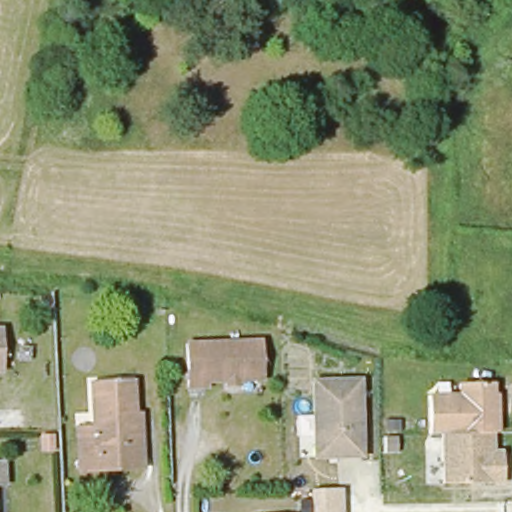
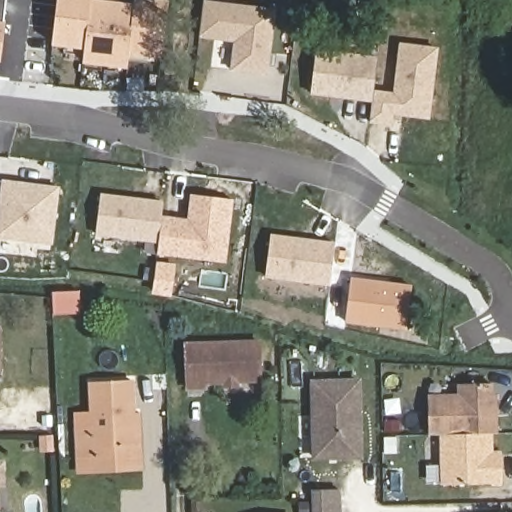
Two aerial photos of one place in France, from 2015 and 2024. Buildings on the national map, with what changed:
new [(0,0),(6,0),(0,43),(0,0)]
new [(128,52),(126,65),(83,61),(84,47),(52,42),(57,0),(92,0),(91,2),(133,7),(133,0),(150,0),(167,2),(161,55),(128,52)]
new [(230,71),(234,42),(199,37),(204,0),(208,0),(278,10),(269,76),(230,71)]
new [(439,47),(430,120),(395,115),(393,126),(369,123),(372,102),(374,90),(393,92),(399,42),(439,47)]
new [(311,95),(316,47),(379,54),(372,102),(311,95)]
new [(0,239),(0,187),(1,179),(61,186),(53,244),(0,239)]
new [(0,189),(0,180),(1,181),(0,189)]
new [(226,263),(157,255),(158,244),(96,235),(101,193),(163,200),(161,215),(187,218),(190,194),(234,199),(226,263)]
new [(266,278),(271,236),(336,244),(331,286),(266,278)]
new [(406,331),(345,323),(350,277),(413,285),(406,331)]
new [(80,292),(80,313),(55,314),(54,293),(80,292)]
unchanged [(205,381),(205,387),(187,387),(187,343),(259,341),(261,380),(239,380),(239,387),(223,388),(223,381),(205,381)]
unchanged [(364,457),(314,459),(312,379),(361,376),(364,457)]
unchanged [(93,426),(90,382),(133,380),(136,446),(96,448),(96,457),(78,457),(76,427),(93,426)]
unchanged [(441,435),(428,435),(428,392),(457,392),(457,382),(493,382),(493,392),(499,391),(501,432),(494,432),(494,450),(501,450),(500,484),(440,485),(441,435)]
unchanged [(146,471),(80,476),(78,460),(98,458),(98,450),(136,446),(146,446),(146,471)]
unchanged [(3,480),(3,487),(0,487),(0,465),(2,465),(3,480)]
unchanged [(310,512),(309,489),(343,488),(343,512),(310,512)]

